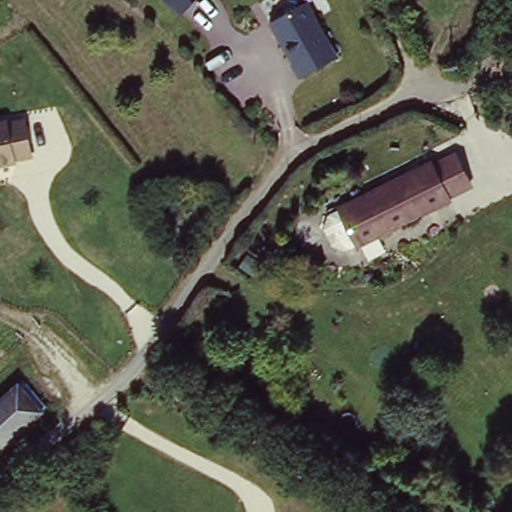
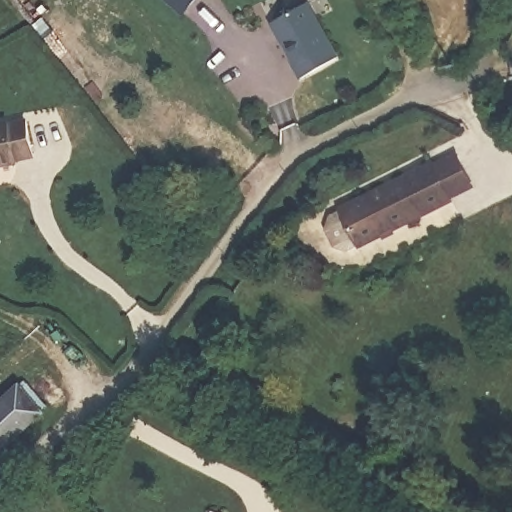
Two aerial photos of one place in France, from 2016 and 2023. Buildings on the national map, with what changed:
unchanged [(165,0),(195,0),(182,15),(165,0)]
unchanged [(340,56),(301,76),(293,61),(295,60),(273,19),(311,0),(340,56)]
unchanged [(0,165),(0,122),(27,116),(34,158),(0,165)]
unchanged [(471,188),(361,245),(341,207),(454,150),(471,188)]
unchanged [(0,402),(22,381),(47,408),(0,451),(0,402)]

